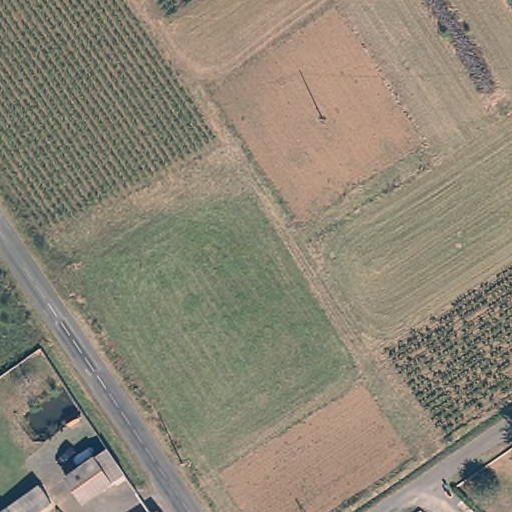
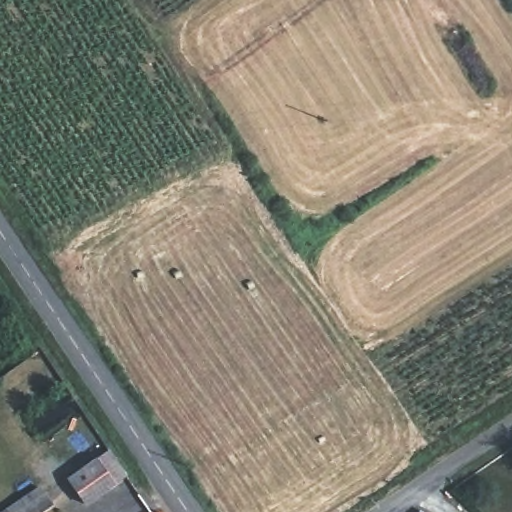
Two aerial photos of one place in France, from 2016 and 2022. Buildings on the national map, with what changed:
unchanged [(85,505),(66,477),(107,450),(125,475),(85,505)]
unchanged [(3,512),(39,487),(51,503),(38,512),(3,512)]

